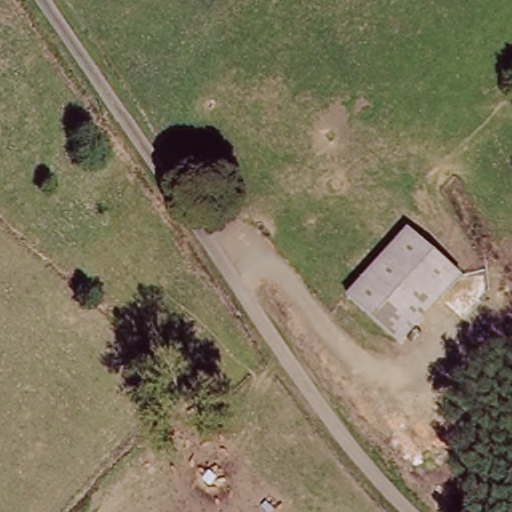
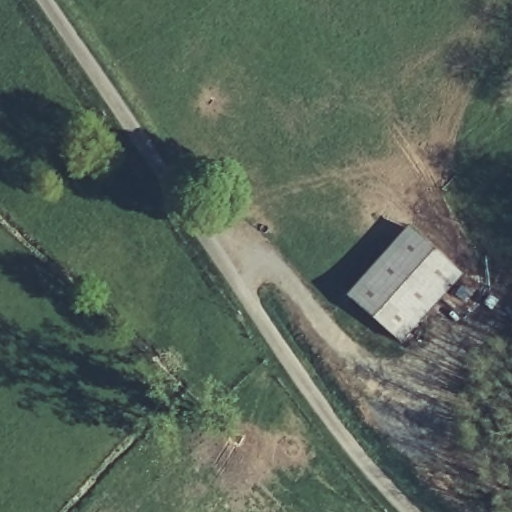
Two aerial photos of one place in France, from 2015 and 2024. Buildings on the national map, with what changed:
unchanged [(400,350),(349,300),(414,235),(464,284),(400,350)]

